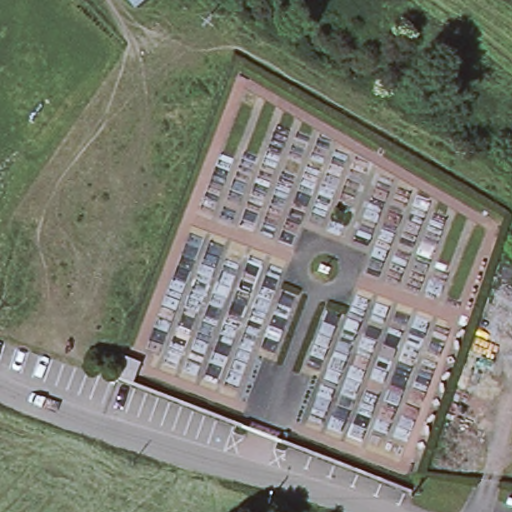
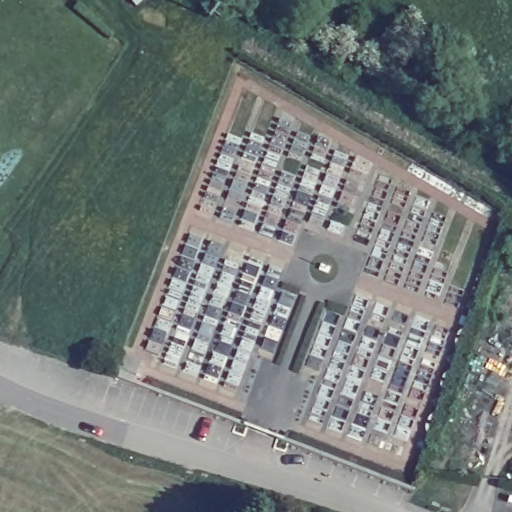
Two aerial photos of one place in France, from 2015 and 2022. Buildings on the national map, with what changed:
unchanged [(127,346),(147,354),(138,376),(118,368),(127,346)]

